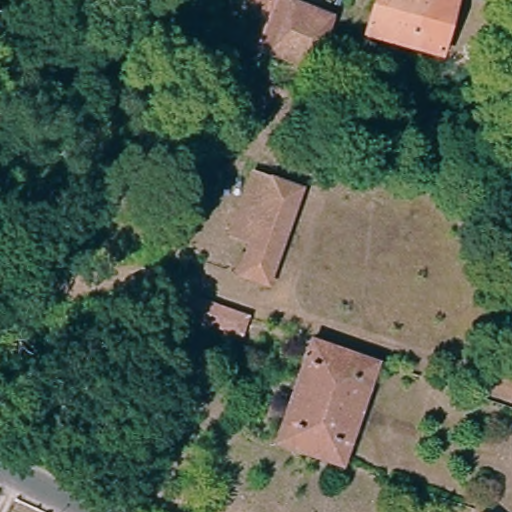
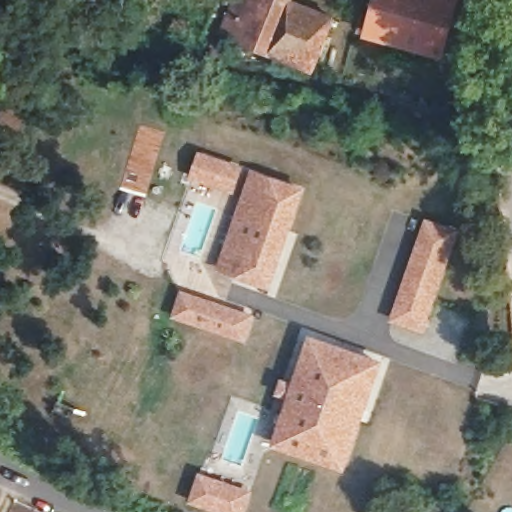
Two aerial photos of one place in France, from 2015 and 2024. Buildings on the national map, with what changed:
unchanged [(235,0),(291,0),(288,7),(330,24),(307,75),(219,38),(235,0)]
unchanged [(442,57),(370,34),(380,0),(458,0),(442,57)]
new [(244,166),(234,195),(190,180),(200,149),(244,166)]
unchanged [(245,243),(227,235),(251,174),(297,192),(263,287),(234,276),(245,243)]
new [(461,231),(425,332),(390,321),(427,218),(461,231)]
unchanged [(180,291),(245,314),(239,332),(174,309),(180,291)]
unchanged [(279,443),(307,359),(312,341),(378,364),(345,466),(279,443)]
new [(246,512),(212,512),(190,505),(200,472),(253,490),(246,512)]

